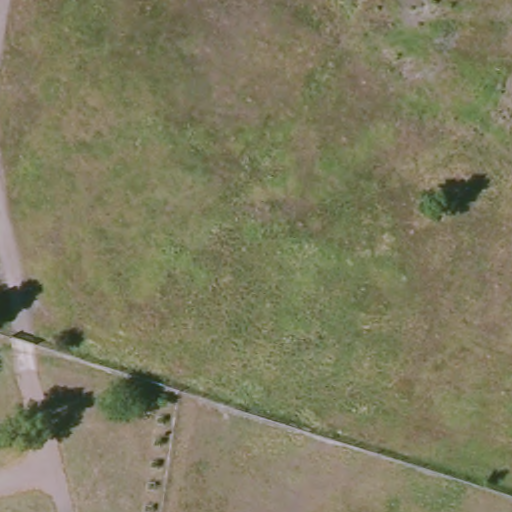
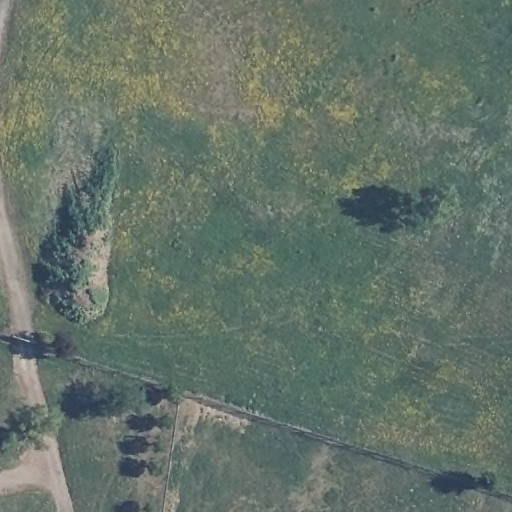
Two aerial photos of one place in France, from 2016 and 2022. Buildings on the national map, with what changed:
[]

